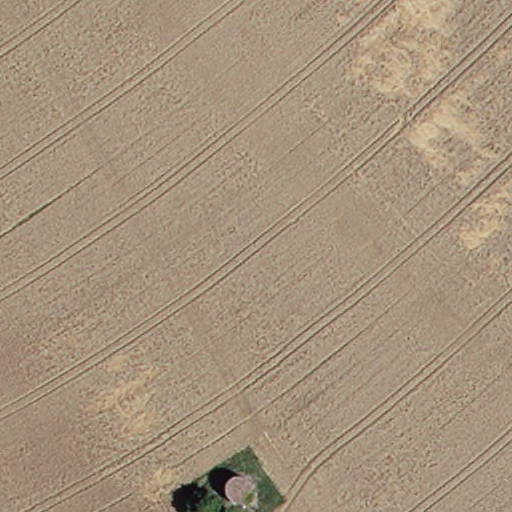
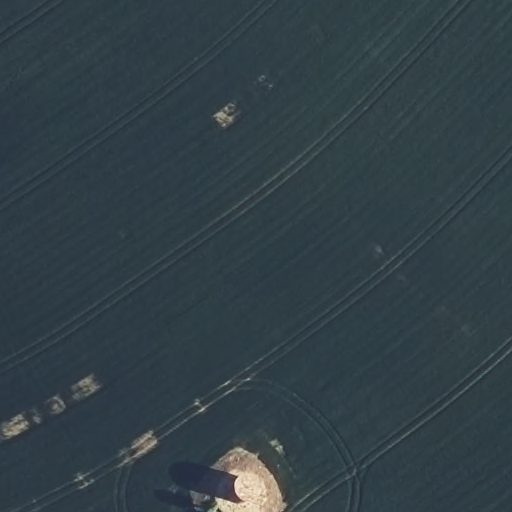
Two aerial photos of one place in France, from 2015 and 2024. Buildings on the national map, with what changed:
unchanged [(235,483),(240,481),(245,481),(249,484),(252,487),(255,492),(255,496),(254,501),(250,505),(245,507),(237,506),(233,503),(231,500),(230,495),(230,491),(231,487),(235,483)]

